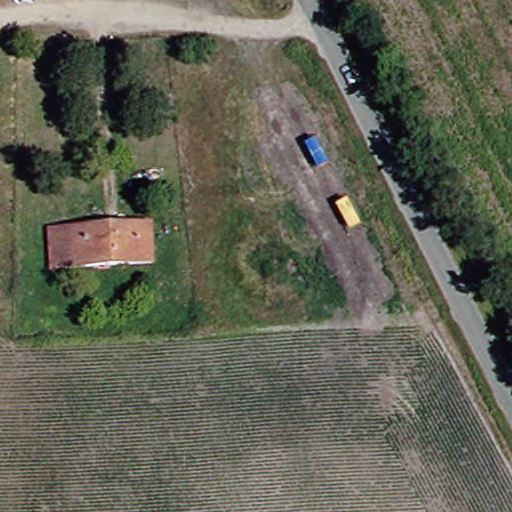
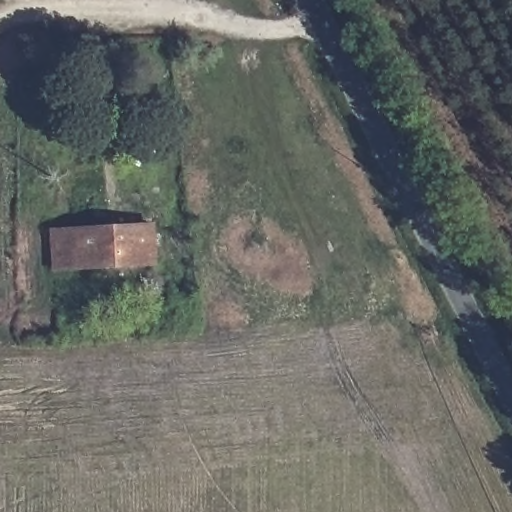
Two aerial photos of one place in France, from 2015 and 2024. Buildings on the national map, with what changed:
unchanged [(153,226),(153,258),(69,262),(71,224),(153,226)]

